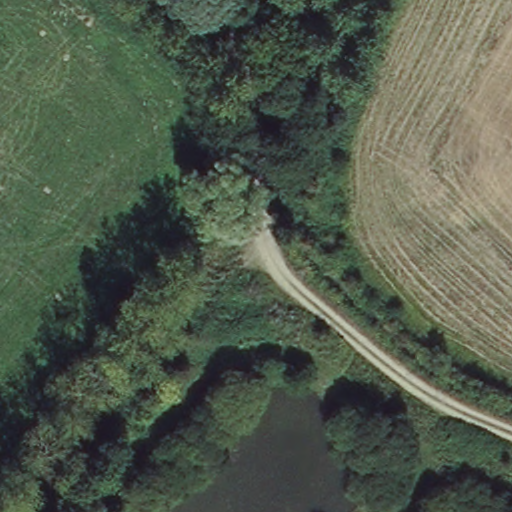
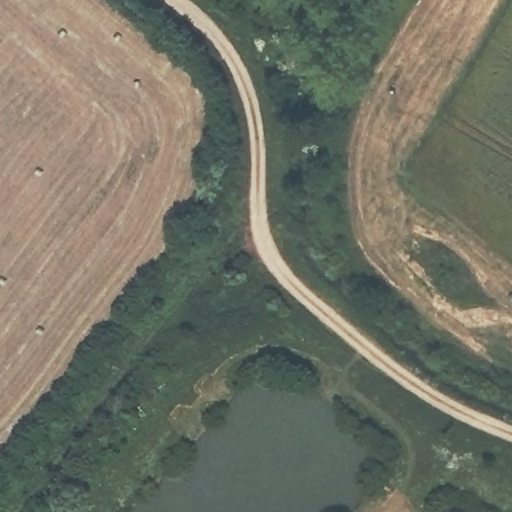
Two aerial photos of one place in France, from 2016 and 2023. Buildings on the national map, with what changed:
[]

